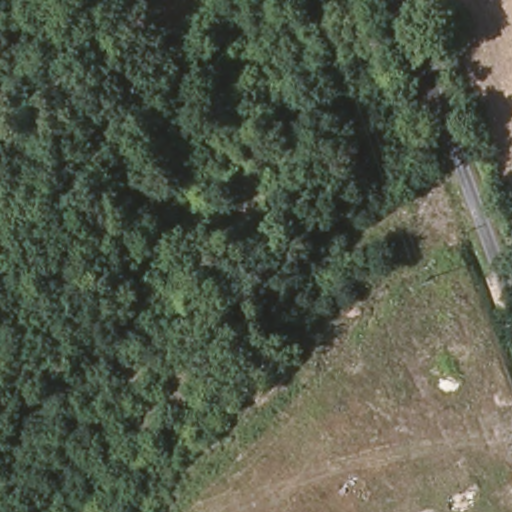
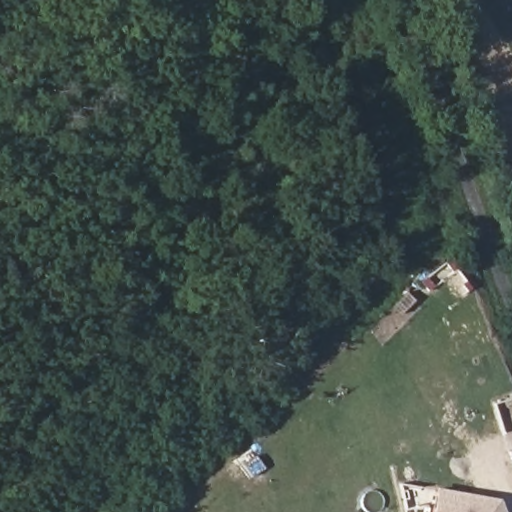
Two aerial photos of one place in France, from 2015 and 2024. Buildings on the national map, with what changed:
new [(442,491),(482,499),(486,512),(438,512),(442,491)]
new [(482,499),(502,503),(505,512),(486,512),(482,499)]

